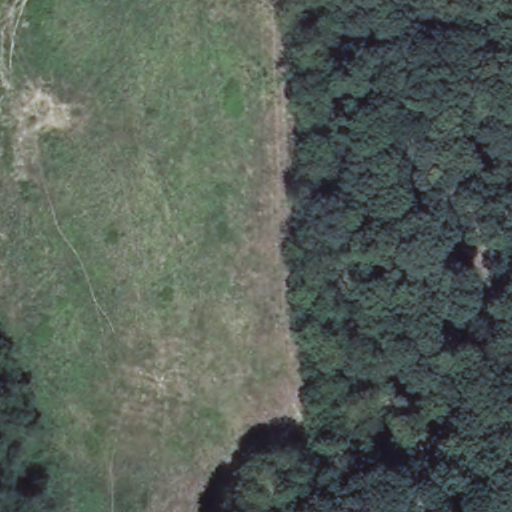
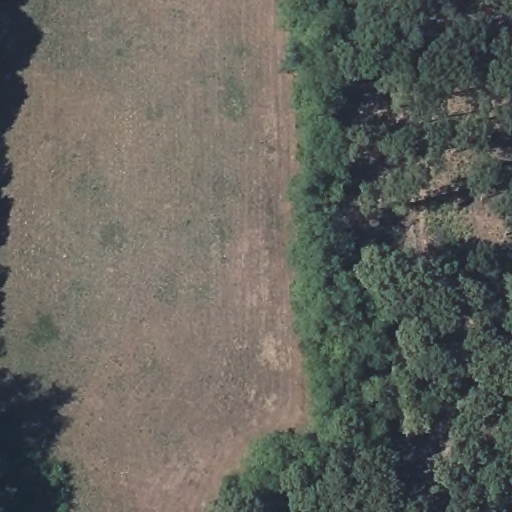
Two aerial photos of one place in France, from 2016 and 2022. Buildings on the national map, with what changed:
[]

